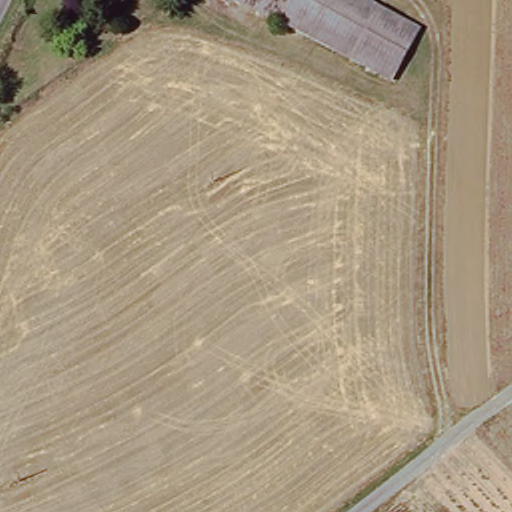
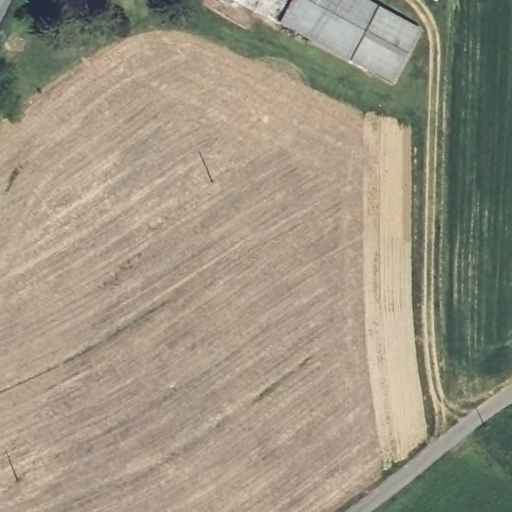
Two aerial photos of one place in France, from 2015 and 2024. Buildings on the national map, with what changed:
unchanged [(423,31),(396,82),(242,0),(365,0),(423,31)]

